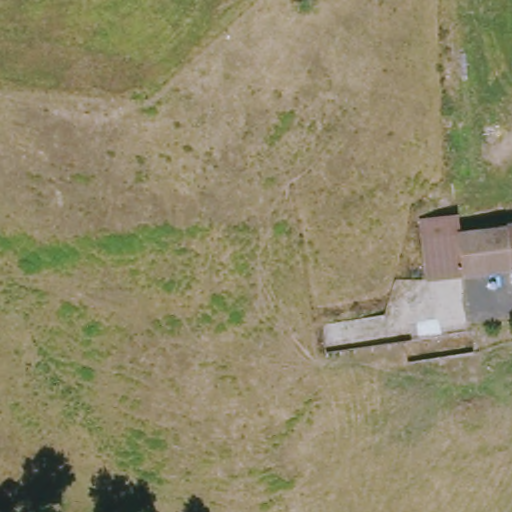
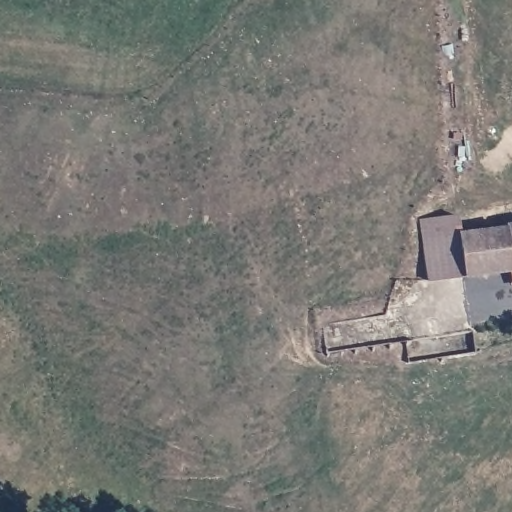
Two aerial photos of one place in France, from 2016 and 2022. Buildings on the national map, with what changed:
unchanged [(437,280),(428,218),(462,214),(466,232),(472,276),(437,280)]
unchanged [(512,226),(512,271),(472,276),(466,232),(512,226)]

